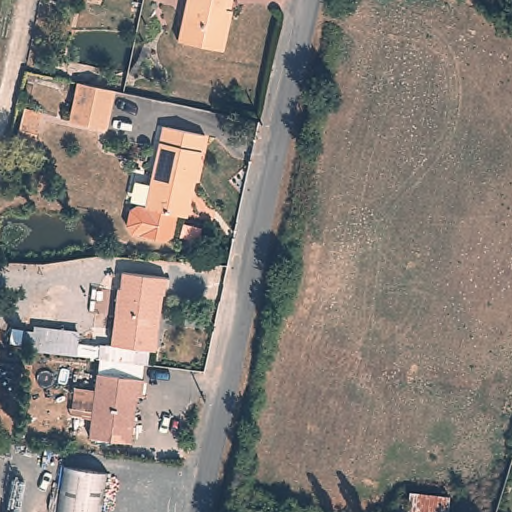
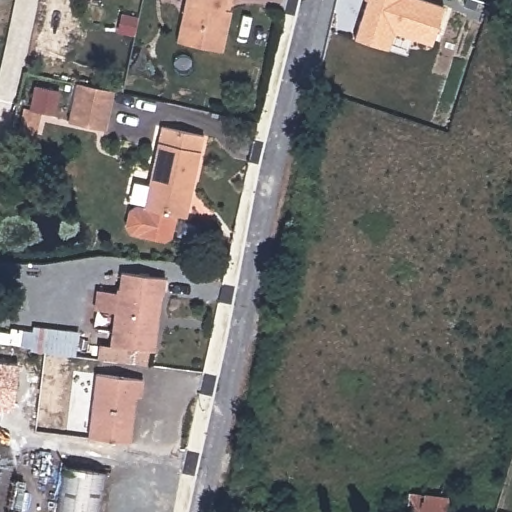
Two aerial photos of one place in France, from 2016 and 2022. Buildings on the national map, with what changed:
unchanged [(235,17),(224,57),(179,46),(192,0),(233,0),(228,16),(235,17)]
new [(428,0),(443,5),(432,45),(392,32),(388,50),(354,41),(366,0),(428,0)]
unchanged [(119,87),(108,127),(71,117),(82,77),(119,87)]
unchanged [(211,140),(198,193),(196,192),(190,219),(183,217),(179,239),(171,244),(129,234),(124,226),(128,211),(135,206),(143,207),(161,129),(211,140)]
unchanged [(125,284),(128,284),(128,268),(172,273),(171,288),(167,288),(161,348),(150,347),(119,343),(125,284)]
unchanged [(126,344),(150,347),(148,363),(142,364),(140,377),(98,372),(102,358),(43,352),(44,328),(78,331),(77,345),(100,347),(100,341),(119,343),(126,344)]
unchanged [(140,377),(145,377),(143,395),(137,395),(132,442),(91,437),(98,372),(140,377)]
unchanged [(66,463),(111,471),(105,512),(59,512),(66,463)]
unchanged [(452,512),(409,512),(408,488),(453,493),(452,512)]

